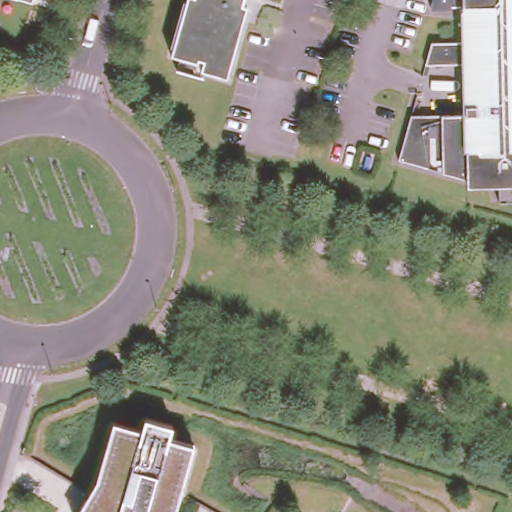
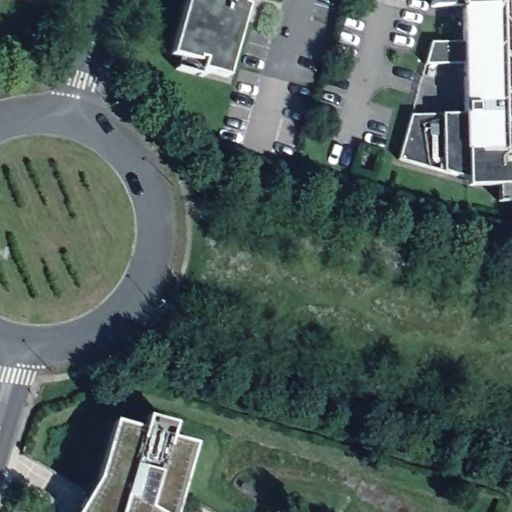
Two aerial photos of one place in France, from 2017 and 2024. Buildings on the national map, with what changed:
unchanged [(179,56),(170,54),(185,0),(242,0),(240,3),(247,5),(242,18),(226,76),(200,69),(177,63),(179,56)]
unchanged [(461,175),(392,157),(405,112),(459,113),(459,62),(419,62),(425,40),(457,40),(458,4),(458,0),(512,0),(512,199),(494,199),(494,182),(461,175)]
unchanged [(425,0),(458,0),(458,4),(424,4),(425,0)]
unchanged [(110,425),(137,431),(141,418),(169,424),(167,441),(190,446),(173,512),(77,512),(97,480),(110,425)]

